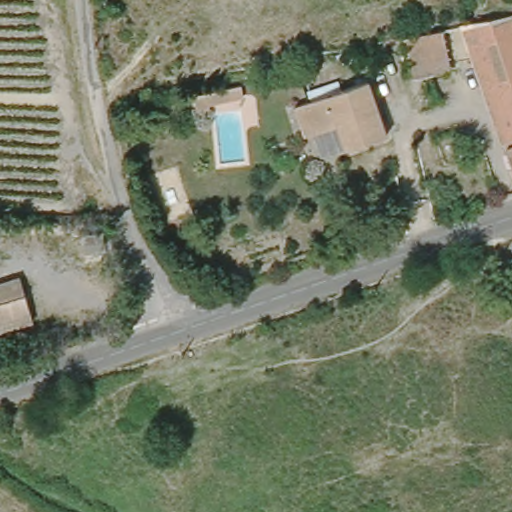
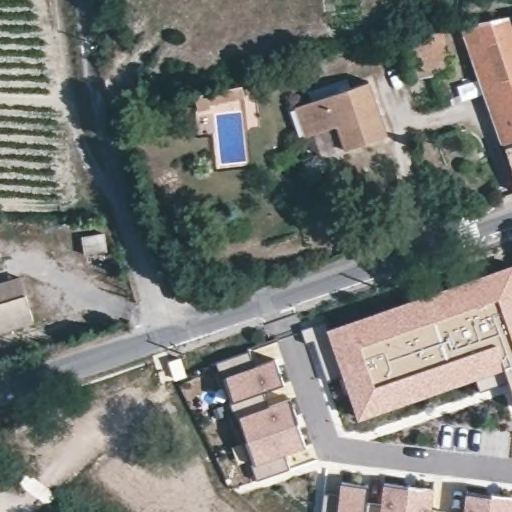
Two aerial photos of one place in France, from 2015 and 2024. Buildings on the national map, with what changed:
unchanged [(477,70),(463,31),(512,20),(512,173),(477,70)]
unchanged [(477,70),(418,79),(412,80),(405,44),(463,31),(477,70)]
unchanged [(247,81),(248,91),(214,98),(214,97),(218,87),(247,81)]
unchanged [(291,111),(298,109),(363,86),(382,140),(340,154),(332,130),(308,138),(301,140),(291,111)]
unchanged [(218,87),(214,97),(215,102),(202,105),(198,91),(212,87),(218,87)]
unchanged [(81,237),(102,234),(105,251),(83,255),(81,237)]
new [(333,326),(512,263),(512,379),(485,388),(480,375),(365,415),(345,360),(328,366),(314,325),(331,318),(333,326)]
unchanged [(25,294),(0,302),(0,282),(20,277),(25,294)]
unchanged [(33,321),(0,330),(0,302),(25,294),(33,321)]
new [(228,419),(232,418),(227,403),(223,404),(215,381),(222,378),(218,379),(212,362),(245,351),(252,368),(272,361),(280,384),(260,392),(265,407),(285,399),(294,423),(302,447),(281,453),(287,471),(254,482),(248,465),(245,467),(236,443),(228,419)]
new [(345,498),(346,485),(373,487),(371,506),(370,512),(328,512),(330,497),(345,498)]
new [(386,507),(388,485),(413,488),(438,491),(436,511),(451,512),(370,512),(371,506),(386,507)]
new [(493,500),(493,496),(512,498),(512,512),(466,512),(468,497),(493,500)]

